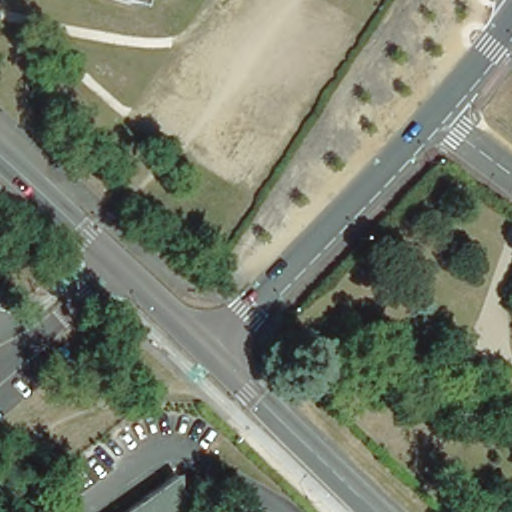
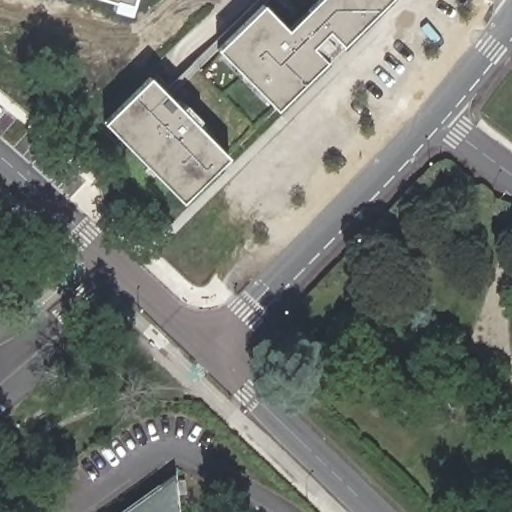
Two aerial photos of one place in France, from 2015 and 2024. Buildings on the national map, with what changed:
unchanged [(130,7),(107,0),(132,0),(130,7)]
new [(215,49),(260,4),(285,29),(315,0),(387,0),(275,110),(215,49)]
new [(228,157),(182,203),(102,122),(148,77),(174,103),(228,157)]
unchanged [(173,480),(183,479),(185,494),(175,495),(177,512),(121,512),(172,475),(173,480)]

